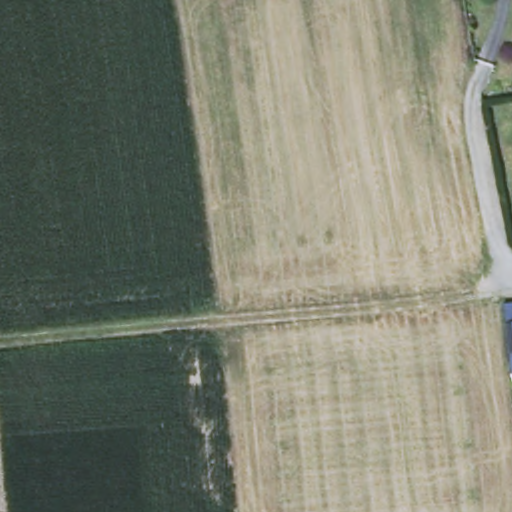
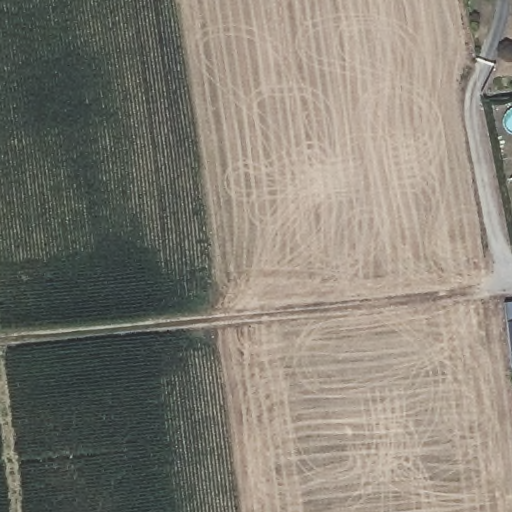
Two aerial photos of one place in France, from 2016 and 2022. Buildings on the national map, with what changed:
unchanged [(512,371),(504,303),(512,302),(512,371)]

